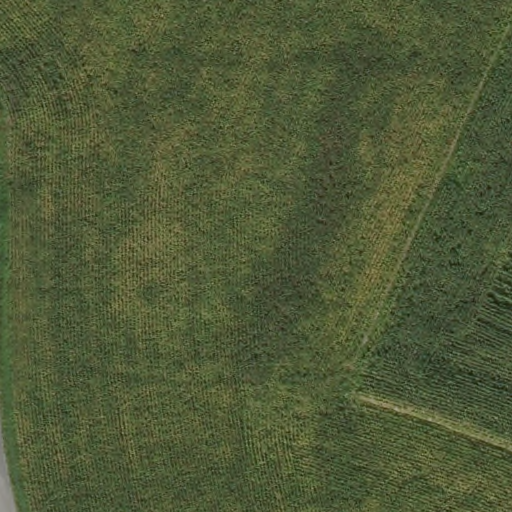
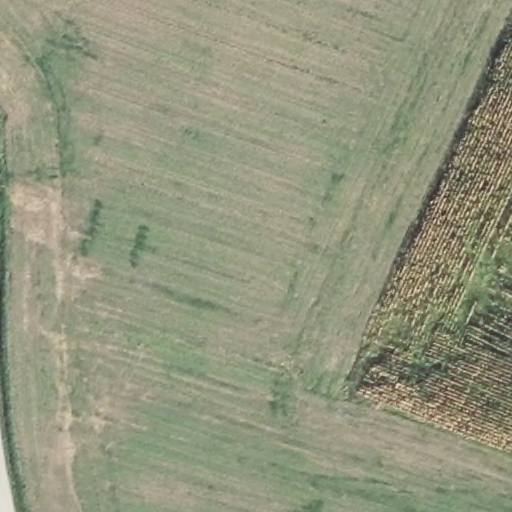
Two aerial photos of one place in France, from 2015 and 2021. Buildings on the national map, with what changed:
[]

